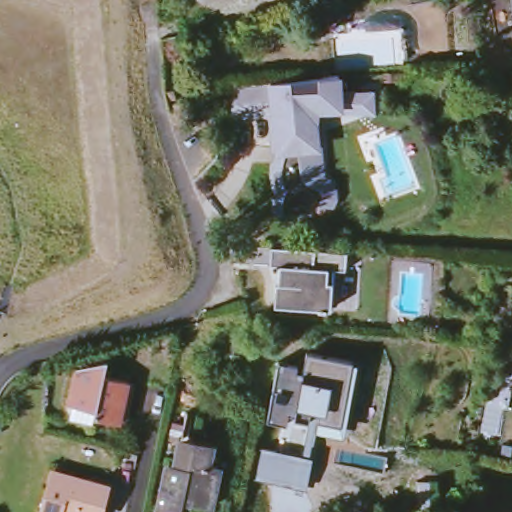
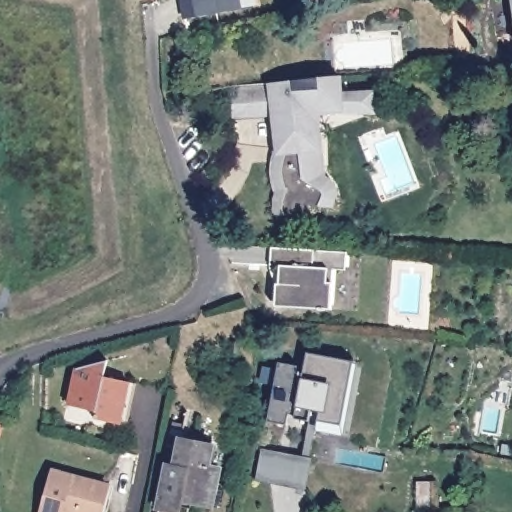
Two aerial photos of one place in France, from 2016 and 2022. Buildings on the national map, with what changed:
new [(260,6),(193,19),(185,0),(258,0),(260,6)]
unchanged [(510,0),(512,0),(512,13),(510,0)]
unchanged [(340,94),(373,91),(374,107),(341,110),(316,111),(315,125),(316,130),(321,176),(322,178),(326,180),(329,182),(332,185),(333,187),(335,190),(336,194),(336,196),(336,201),(336,204),(335,205),(334,208),(333,210),(332,211),(310,208),(309,214),(307,219),(274,218),(274,214),(274,210),(274,205),(274,204),(275,199),(276,194),(277,190),(276,186),(274,180),(274,177),(274,172),(274,168),(275,162),(277,158),(278,155),(276,131),(275,117),(273,87),(339,82),(340,94)]
unchanged [(234,120),(233,90),(273,87),(275,117),(234,120)]
unchanged [(307,249),(342,251),(341,270),(328,268),(324,309),(292,307),(293,303),(269,301),(270,283),(273,283),(275,265),(265,265),(267,246),(307,249)]
unchanged [(259,450),(302,457),(311,422),(295,419),(296,413),(289,413),(287,425),(268,422),(279,363),(297,366),(296,372),(305,373),(308,355),(357,364),(343,435),(317,430),(309,458),(312,458),(306,490),(252,478),(259,450)]
unchanged [(69,419),(72,405),(68,405),(76,367),(107,359),(104,376),(126,381),(118,423),(93,417),(91,423),(69,419)]
unchanged [(175,453),(179,431),(192,433),(192,436),(206,440),(203,453),(217,455),(209,496),(190,492),(191,486),(183,485),(177,512),(155,512),(166,452),(175,453)]
unchanged [(106,485),(99,512),(40,512),(50,471),(106,485)]

